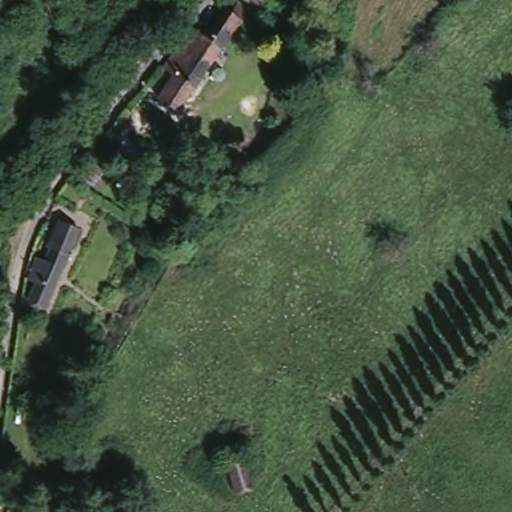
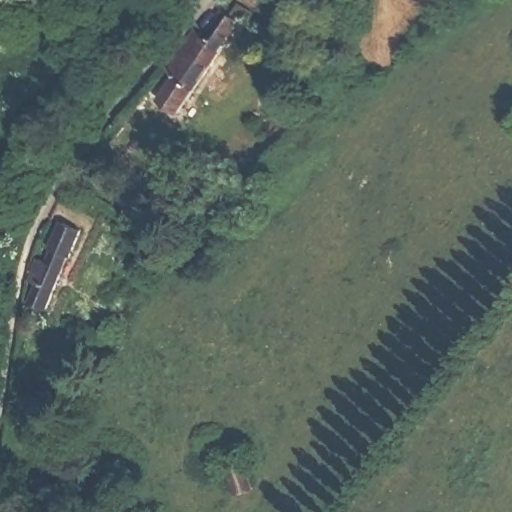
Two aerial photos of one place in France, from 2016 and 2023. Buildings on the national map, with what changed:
unchanged [(238,28),(177,114),(154,99),(166,81),(156,75),(172,53),(182,58),(215,12),(238,28)]
unchanged [(41,260),(47,264),(65,225),(85,238),(45,309),(27,299),(34,288),(27,281),(41,260)]
unchanged [(240,458),(253,488),(237,496),(222,467),(240,458)]

